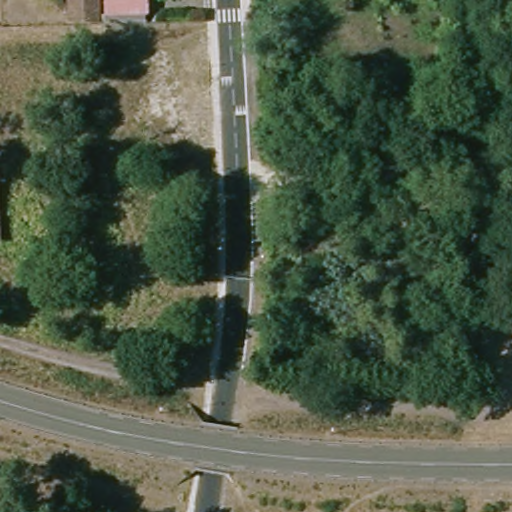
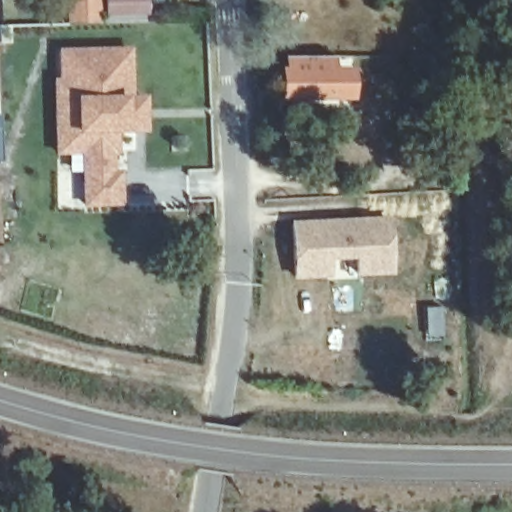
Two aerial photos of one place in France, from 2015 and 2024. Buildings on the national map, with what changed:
unchanged [(91,16),(62,17),(62,0),(91,0),(91,16)]
unchanged [(144,10),(103,10),(103,0),(144,0),(144,10)]
new [(11,26),(12,43),(0,43),(0,26),(11,26)]
new [(133,48),(134,96),(148,96),(148,133),(127,134),(119,135),(119,155),(115,156),(115,171),(123,171),(123,207),(82,208),(81,172),(100,172),(100,156),(54,156),(52,79),(57,79),(58,49),(133,48)]
new [(333,69),(352,69),(353,101),(280,103),(279,69),(283,69),(283,58),(334,58),(333,69)]
new [(3,114),(1,161),(0,161),(0,114),(3,114)]
unchanged [(433,119),(434,162),(403,162),(402,119),(433,119)]
new [(293,281),(290,223),(390,218),(393,276),(354,277),(353,259),(329,260),(329,279),(293,281)]
unchanged [(0,244),(0,231),(1,244),(0,244)]

